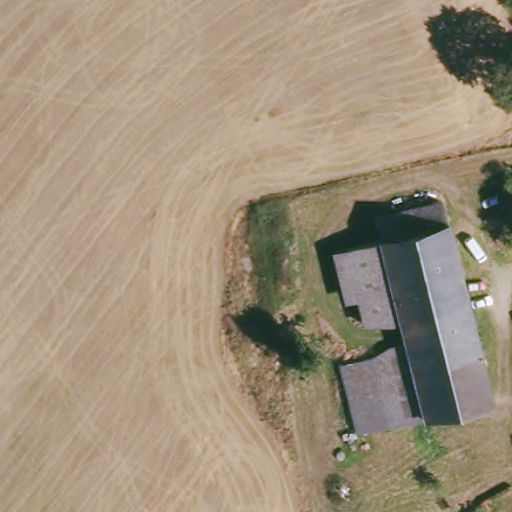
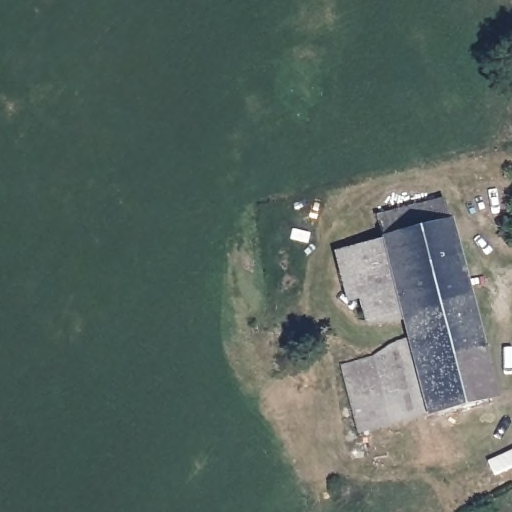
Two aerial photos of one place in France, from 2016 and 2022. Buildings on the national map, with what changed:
unchanged [(488,401),(423,416),(422,413),(403,334),(399,316),(381,241),(376,219),(442,206),(488,401)]
unchanged [(399,316),(365,323),(346,248),(381,241),(399,316)]
unchanged [(422,413),(351,429),(335,361),(370,353),(384,342),(403,334),(422,413)]

